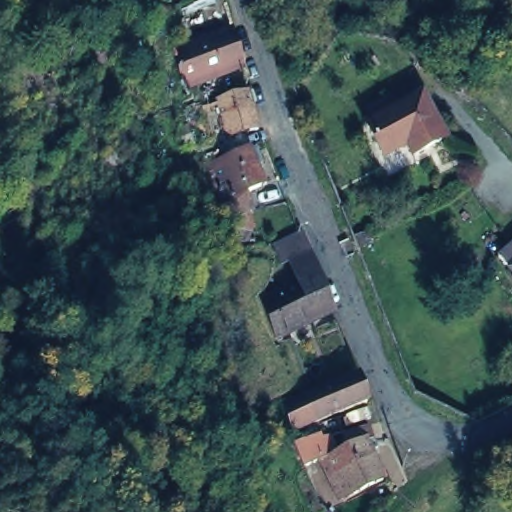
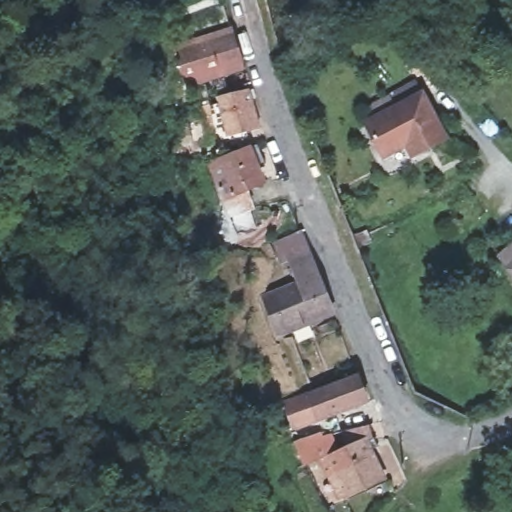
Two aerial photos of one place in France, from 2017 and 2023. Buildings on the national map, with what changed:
unchanged [(247,72),(192,89),(178,52),(237,35),(247,72)]
unchanged [(245,128),(247,141),(218,147),(216,135),(228,131),(217,98),(247,90),(258,126),(245,128)]
unchanged [(420,90),(444,135),(409,152),(403,141),(380,152),(364,119),(420,90)]
unchanged [(260,162),(253,165),(262,183),(245,190),(251,209),(229,216),(207,162),(251,145),(260,162)]
unchanged [(307,250),(280,260),(275,244),(301,234),(307,250)]
unchanged [(263,297),(265,296),(297,283),(290,260),(308,254),(332,312),(285,330),(276,335),(275,330),(263,297)]
unchanged [(512,257),(512,272),(505,263),(512,257)]
unchanged [(290,425),(281,399),(357,371),(367,396),(290,425)]
unchanged [(323,430),(319,419),(335,415),(340,426),(367,418),(374,432),(367,436),(384,471),(345,491),(323,450),(304,458),(295,437),(317,427),(320,432),(323,430)]

